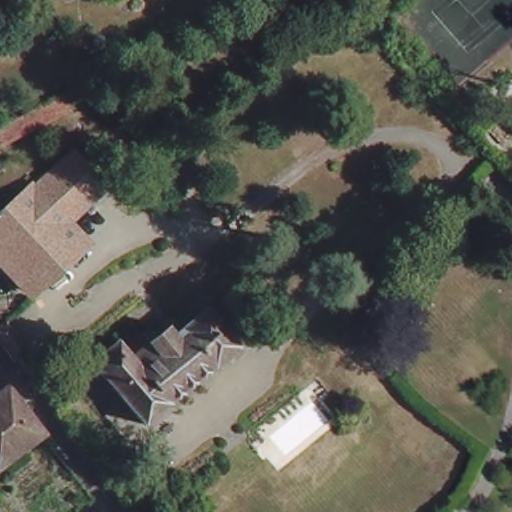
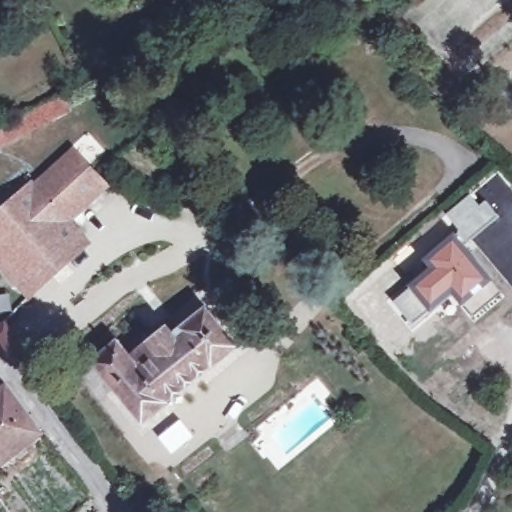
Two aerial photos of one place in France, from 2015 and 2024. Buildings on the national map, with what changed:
unchanged [(69,109),(2,144),(0,145),(0,125),(62,94),(69,109)]
unchanged [(50,180),(72,160),(105,195),(67,230),(85,250),(27,301),(0,271),(0,219),(33,190),(50,180)]
new [(472,191),(482,203),(485,199),(498,215),(467,242),(445,213),(472,191)]
new [(391,300),(412,282),(432,267),(425,260),(454,237),(487,278),(462,298),(453,287),(432,307),(412,324),(391,300)]
unchanged [(169,338),(200,312),(233,351),(139,427),(88,366),(112,345),(120,354),(131,344),(139,338),(145,345),(162,330),(169,338)]
unchanged [(13,360),(0,342),(0,324),(7,319),(28,349),(19,356),(13,360)]
unchanged [(0,458),(0,388),(33,433),(0,458)]

